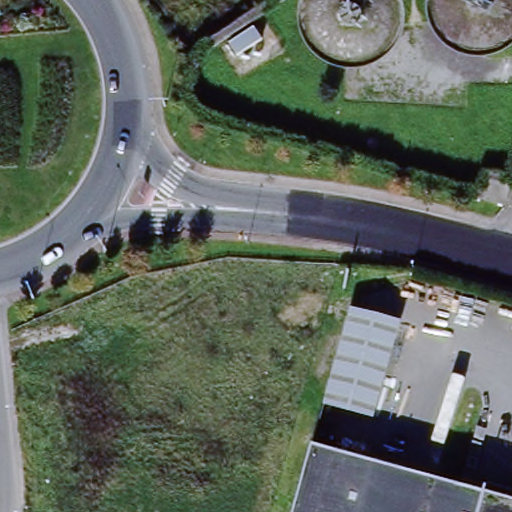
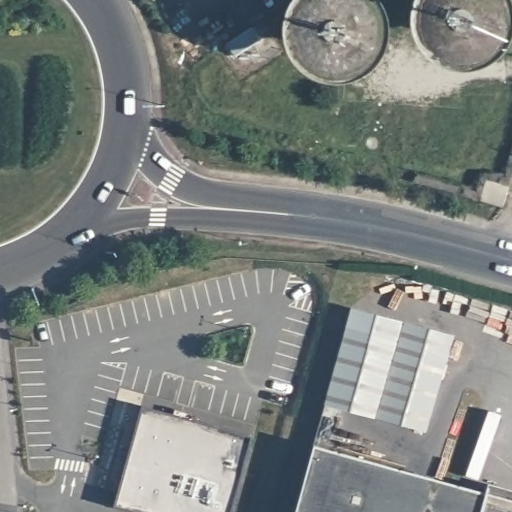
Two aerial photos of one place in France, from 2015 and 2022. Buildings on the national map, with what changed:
unchanged [(512,190),(512,192),(512,194),(507,209),(488,203),(489,199),(494,184),(512,190)]
unchanged [(401,320),(376,419),(324,406),(349,308),(401,320)]
new [(143,407),(173,416),(191,421),(254,438),(234,512),(125,512),(114,509),(143,407)]
unchanged [(313,446),(484,489),(476,512),(294,512),(313,446)]
unchanged [(484,489),(512,497),(512,512),(476,512),(484,489)]

